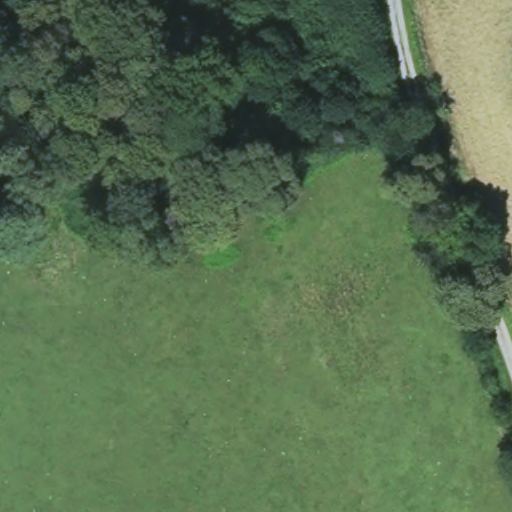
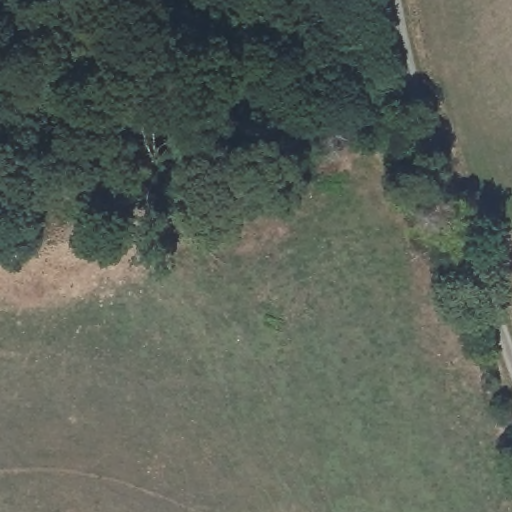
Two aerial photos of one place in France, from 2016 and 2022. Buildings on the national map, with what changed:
[]

